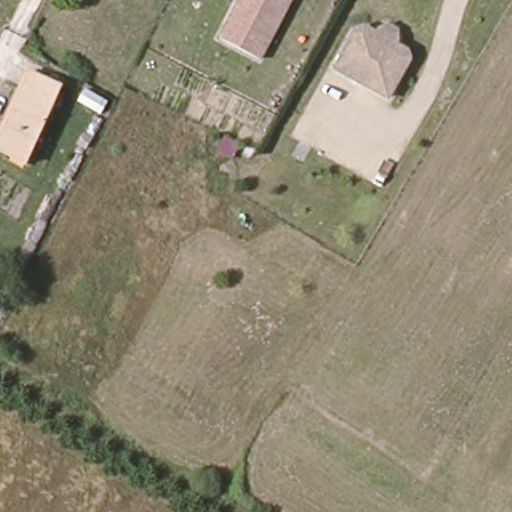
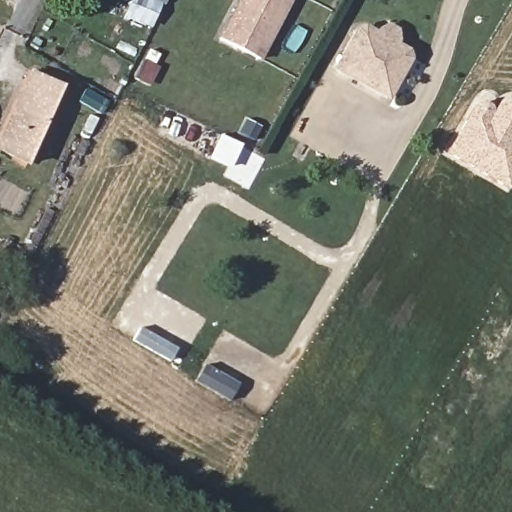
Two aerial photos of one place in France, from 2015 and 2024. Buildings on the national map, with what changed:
unchanged [(258,60),(219,41),(240,0),(292,0),(258,60)]
unchanged [(363,27),(376,35),(379,30),(386,25),(396,31),(396,40),(394,44),(407,51),(409,58),(387,97),(334,69),(357,29),(363,27)]
unchanged [(32,73),(59,85),(25,161),(0,148),(0,141),(32,73)]
new [(500,99),(504,97),(512,95),(512,182),(507,190),(444,154),(472,105),(478,102),(485,102),(490,106),(492,111),(498,100),(500,99)]

